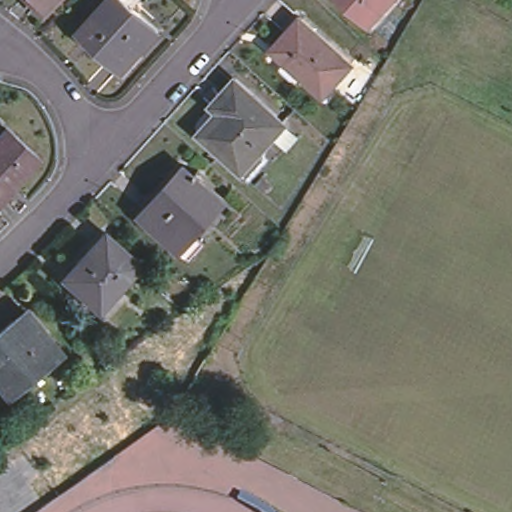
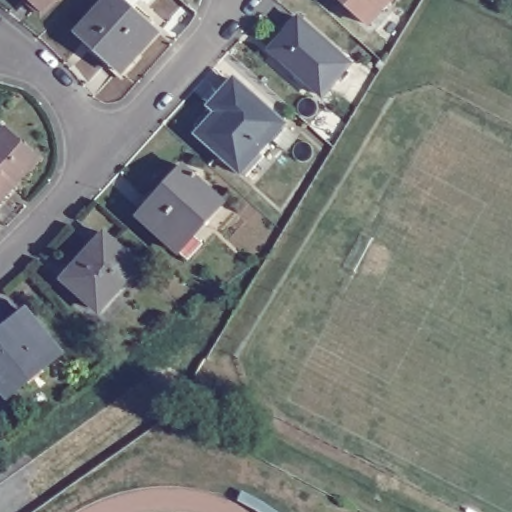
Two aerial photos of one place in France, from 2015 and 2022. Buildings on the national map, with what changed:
unchanged [(22,0),(50,0),(36,14),(22,0)]
unchanged [(122,75),(78,35),(109,0),(120,0),(159,35),(122,75)]
unchanged [(330,0),(390,0),(365,29),(330,0)]
unchanged [(351,65),(324,98),(273,55),(299,22),(351,65)]
unchanged [(279,128),(236,175),(194,138),(222,107),(215,101),(230,84),(279,128)]
unchanged [(39,161),(0,202),(0,137),(6,131),(39,161)]
unchanged [(221,206),(176,256),(136,220),(182,170),(221,206)]
unchanged [(97,316),(62,284),(102,238),(138,270),(97,316)]
unchanged [(7,400),(0,391),(0,335),(24,315),(59,357),(7,400)]

